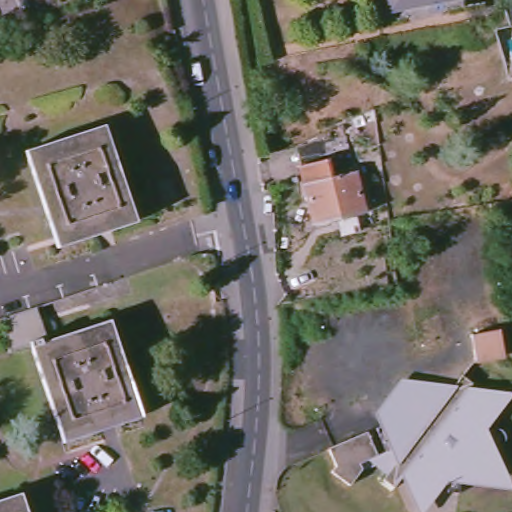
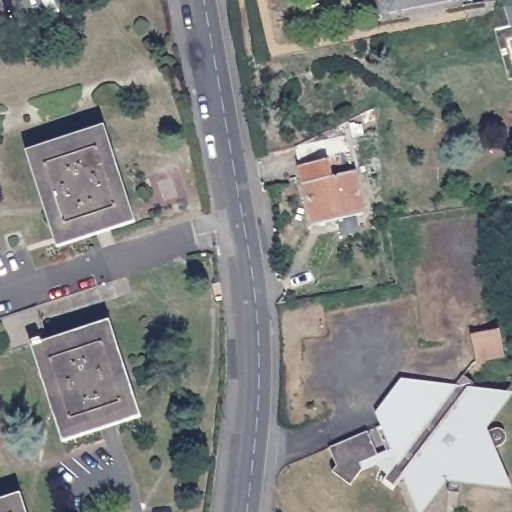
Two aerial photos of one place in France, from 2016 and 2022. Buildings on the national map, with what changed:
unchanged [(404,8),(388,11),(386,0),(438,0),(404,6),(404,8)]
unchanged [(443,12),(441,0),(460,0),(462,8),(443,12)]
unchanged [(504,5),(512,3),(512,27),(511,27),(504,5)]
unchanged [(60,248),(30,151),(107,126),(137,222),(60,248)]
unchanged [(351,146),(353,162),(331,166),(333,184),(355,181),(362,224),(311,232),(299,153),(351,146)]
unchanged [(141,416),(64,441),(33,344),(110,321),(141,416)]
unchanged [(498,325),(505,352),(477,359),(470,332),(498,325)]
unchanged [(455,384),(467,369),(477,377),(472,385),(471,386),(506,390),(482,421),(484,426),(500,421),(505,422),(507,423),(510,431),(509,435),(507,438),(491,444),(504,481),(462,470),(458,485),(446,482),(451,467),(440,463),(422,503),(407,469),(395,489),(384,482),(401,455),(397,447),(387,450),(377,425),(387,422),(382,410),(405,379),(455,384)]
unchanged [(369,428),(379,454),(362,462),(364,468),(349,501),(331,492),(334,478),(342,480),(326,445),(369,428)]
unchanged [(0,499),(22,492),(28,512),(0,512),(0,499)]

